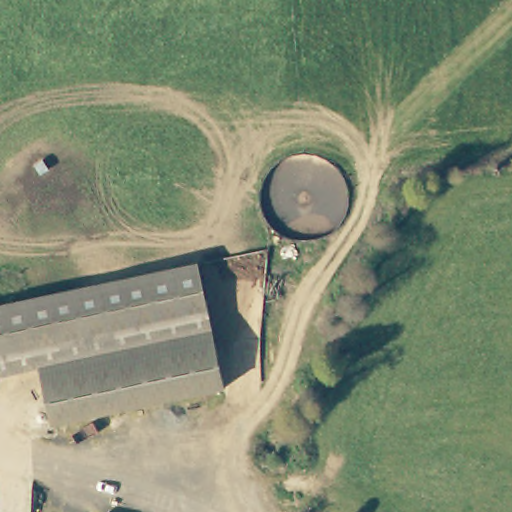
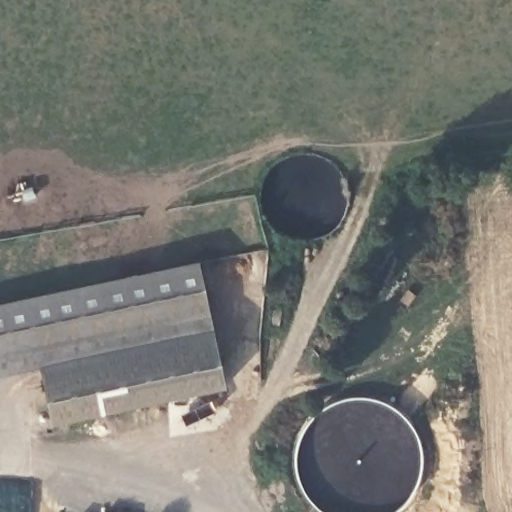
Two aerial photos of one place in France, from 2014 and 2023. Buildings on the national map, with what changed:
unchanged [(0,312),(200,270),(213,326),(40,361),(0,369),(0,312)]
unchanged [(54,432),(40,361),(213,326),(227,395),(54,432)]

